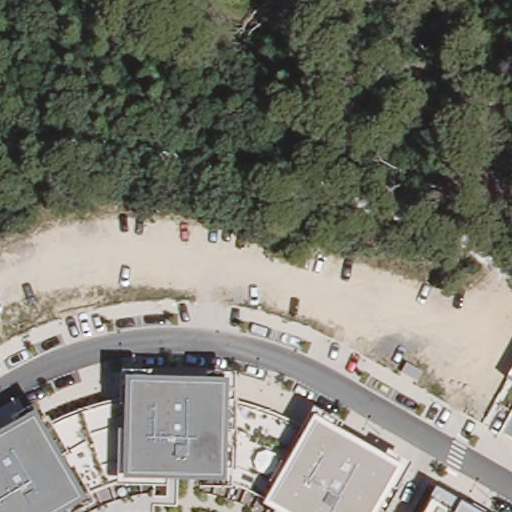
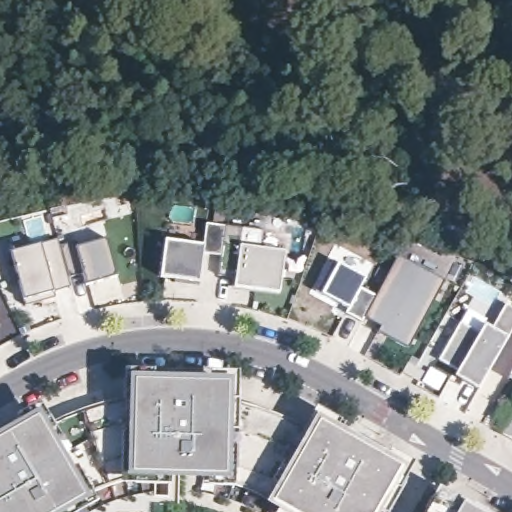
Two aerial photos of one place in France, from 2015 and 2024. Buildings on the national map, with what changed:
new [(166,238),(205,243),(208,222),(225,224),(221,252),(204,250),(200,279),(161,274),(166,238)]
new [(287,232),(285,250),(280,290),(235,285),(236,275),(219,272),(221,252),(225,224),(262,229),(287,232)]
new [(43,306),(42,301),(25,305),(18,282),(9,285),(0,255),(0,240),(28,232),(32,246),(58,240),(71,287),(55,291),(56,297),(58,302),(43,306)]
new [(376,295),(398,255),(445,280),(409,347),(379,331),(381,326),(365,317),(376,295)]
new [(366,278),(360,287),(376,295),(365,317),(362,320),(347,312),(348,307),(322,295),(338,264),(366,278)]
new [(483,331),(488,322),(494,326),(508,301),(512,304),(512,331),(480,387),(458,374),(461,368),(441,357),(462,320),(483,331)]
unchanged [(394,486),(380,512),(272,512),(276,506),(268,502),(236,487),(199,485),(199,479),(170,478),(169,485),(122,483),(90,491),(98,502),(79,512),(0,512),(0,430),(16,421),(13,417),(40,404),(52,422),(59,419),(73,413),(97,404),(117,400),(124,398),(125,370),(155,370),(155,375),(226,378),(227,371),(237,372),(238,401),(242,402),(260,407),(280,415),(298,422),(305,426),(318,407),(339,420),(335,425),(387,455),(390,449),(413,461),(398,489),(394,486)]
unchanged [(512,371),(512,377),(510,375),(512,371)]
unchanged [(500,433),(512,413),(512,440),(500,433)]
unchanged [(464,501),(482,512),(423,512),(438,486),(464,501)]

